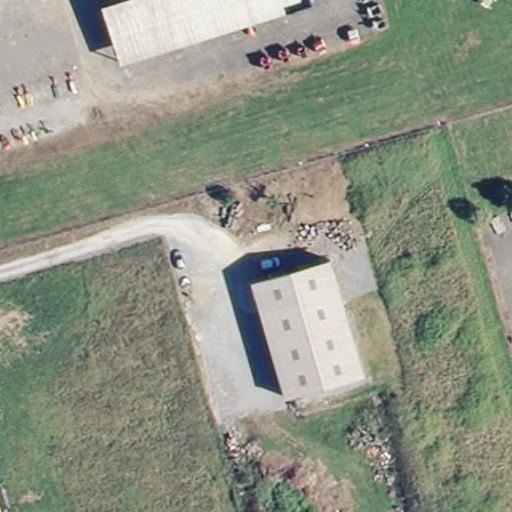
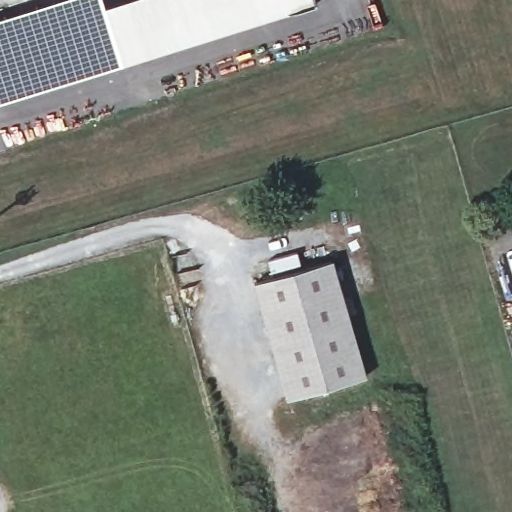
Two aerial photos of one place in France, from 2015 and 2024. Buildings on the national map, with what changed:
new [(103,5),(122,62),(123,65),(0,104),(0,17),(53,0),(102,0),(103,5)]
unchanged [(119,0),(314,0),(314,1),(122,62),(103,5),(119,0)]
unchanged [(365,376),(288,398),(254,281),(331,258),(365,376)]
new [(512,333),(511,329),(512,329),(512,333)]

